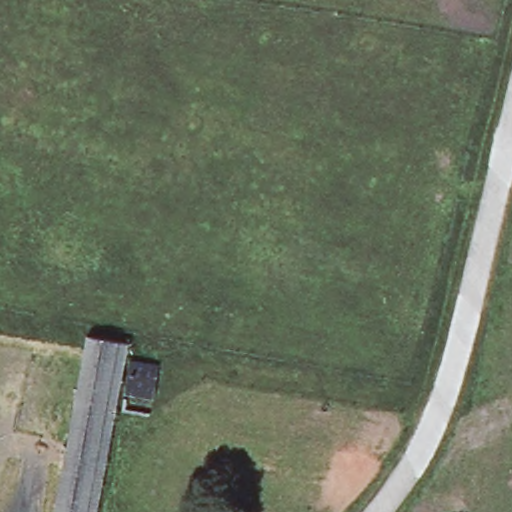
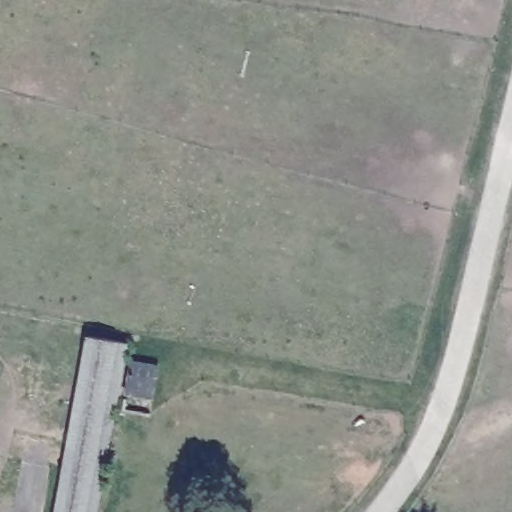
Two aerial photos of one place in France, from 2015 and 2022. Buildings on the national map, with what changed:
unchanged [(121,392),(100,512),(54,512),(86,336),(129,342),(128,354),(159,361),(153,397),(121,392)]

